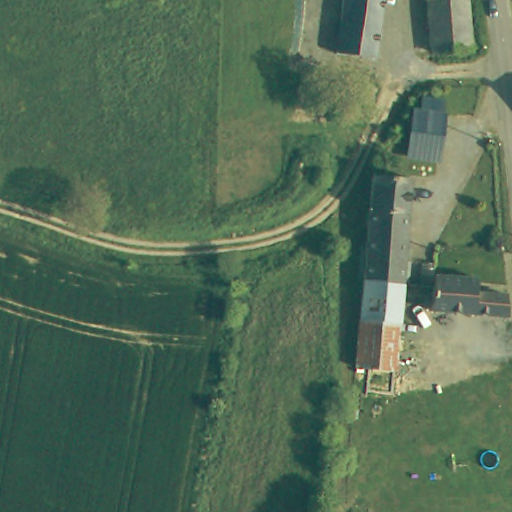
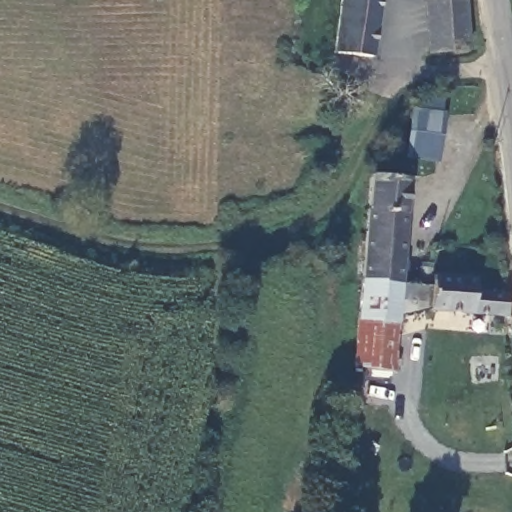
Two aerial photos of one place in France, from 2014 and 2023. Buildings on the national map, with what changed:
unchanged [(374,64),(355,61),(341,59),(335,58),(336,54),(323,53),(330,0),(382,0),(375,55),(374,64)]
unchanged [(436,49),(432,0),(472,0),(475,45),(436,49)]
unchanged [(411,118),(441,124),(438,150),(437,153),(414,148),(408,146),(410,128),(411,118)]
unchanged [(366,182),(407,184),(400,289),(359,285),(366,182)]
unchanged [(482,262),(482,294),(512,294),(512,317),(435,317),(435,292),(436,262),(482,262)]
unchanged [(400,289),(394,374),(359,372),(353,372),(359,285),(400,289)]

